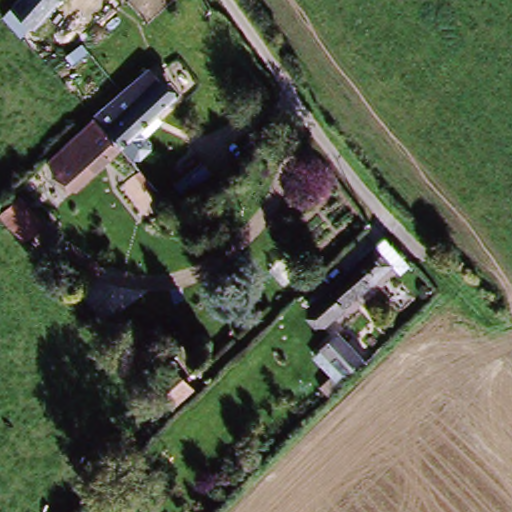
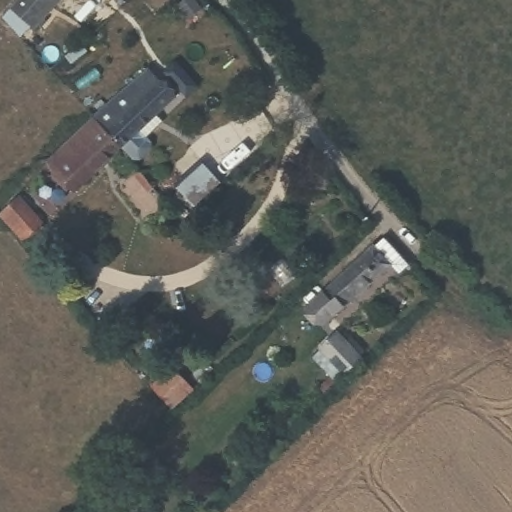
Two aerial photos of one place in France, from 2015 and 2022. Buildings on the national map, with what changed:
unchanged [(11,7),(18,0),(58,0),(33,27),(11,7)]
unchanged [(150,72),(168,91),(110,144),(91,125),(150,72)]
unchanged [(62,186),(45,166),(91,125),(110,144),(89,162),(62,186)]
unchanged [(141,217),(123,198),(138,184),(156,204),(141,217)]
unchanged [(7,212),(22,200),(40,222),(25,235),(7,212)]
unchanged [(313,301),(361,255),(372,244),(386,258),(394,266),(383,277),(375,268),(326,315),(313,301)]
unchanged [(357,356),(336,373),(312,348),(339,335),(357,356)]

